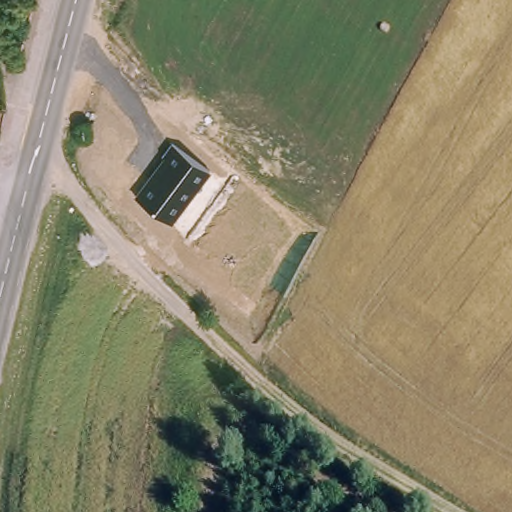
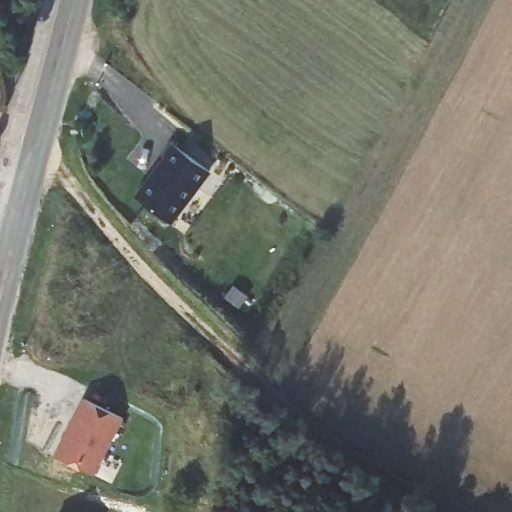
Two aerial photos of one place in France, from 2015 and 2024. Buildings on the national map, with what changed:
unchanged [(172,142),(211,173),(172,225),(135,197),(172,142)]
new [(71,406),(72,407),(80,395),(117,414),(87,470),(48,449),(71,406)]
new [(51,510),(65,512),(51,512),(51,510)]

